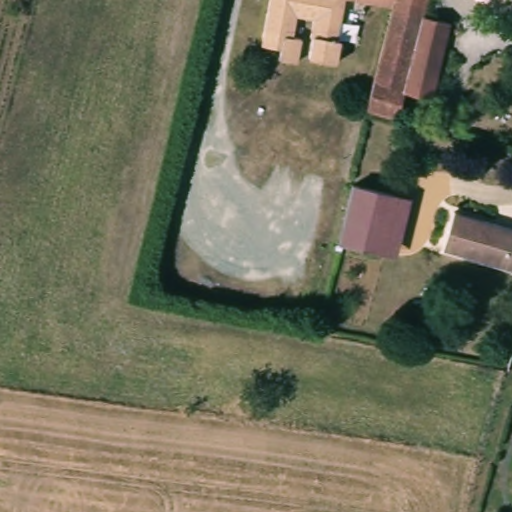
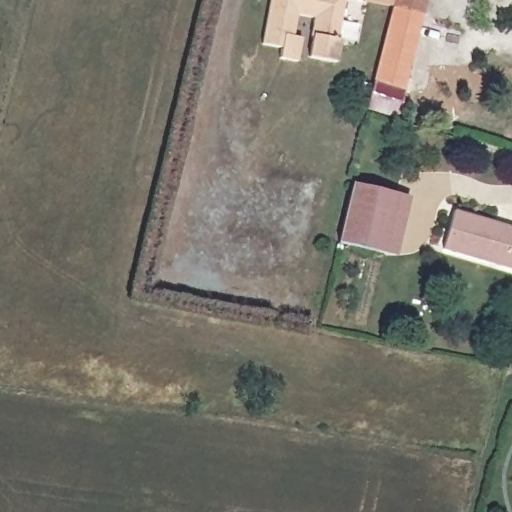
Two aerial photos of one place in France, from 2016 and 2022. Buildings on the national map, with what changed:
unchanged [(334,35),(338,36),(334,59),(309,55),(313,33),(310,32),(312,15),(295,11),(292,33),(300,35),(296,60),(278,56),(280,46),(261,41),(267,0),(341,0),(334,35)]
unchanged [(418,13),(447,21),(432,96),(403,89),(397,117),(367,108),(394,0),(422,0),(418,13)]
unchanged [(382,252),(338,242),(352,185),(395,195),(382,252)]
unchanged [(441,248),(452,210),(512,228),(512,269),(441,248)]

